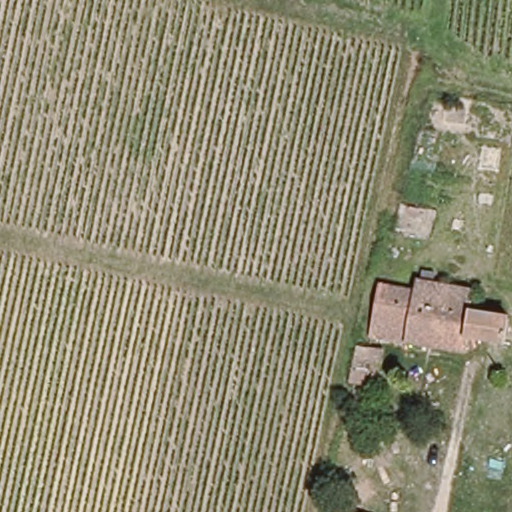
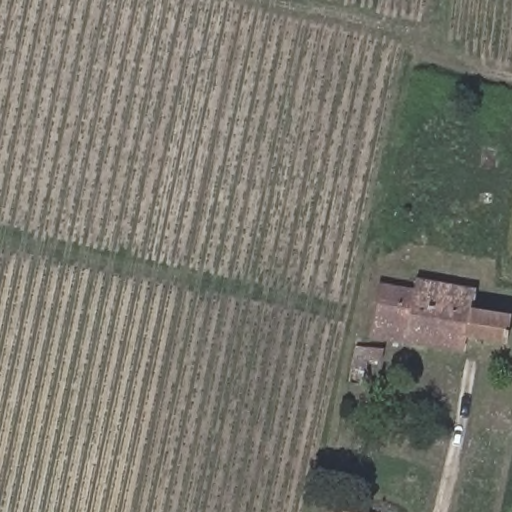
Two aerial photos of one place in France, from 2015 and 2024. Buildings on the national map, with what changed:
unchanged [(409,343),(380,339),(375,338),(381,294),(390,295),(415,299),(417,283),(428,284),(472,290),(469,310),(505,316),(502,338),(466,333),(463,351),(409,343)]

